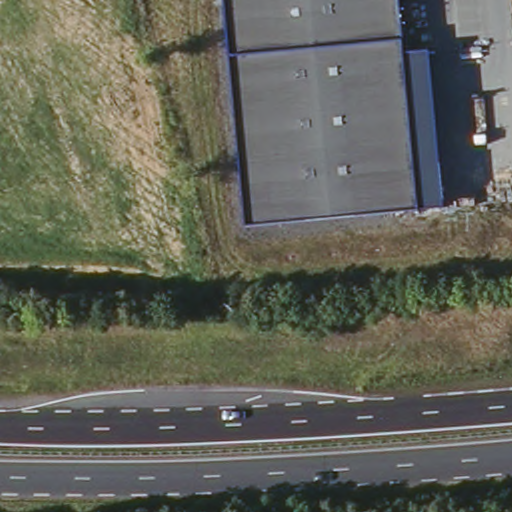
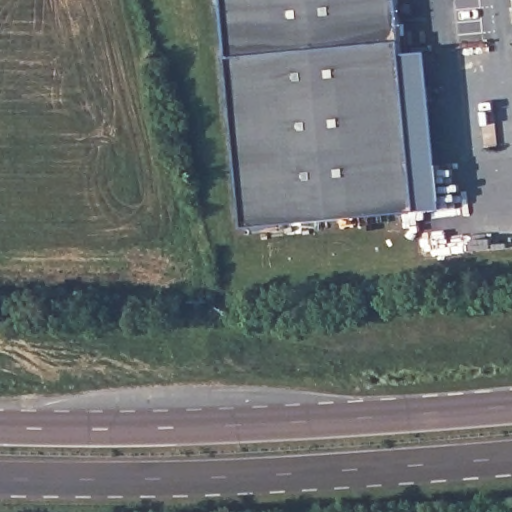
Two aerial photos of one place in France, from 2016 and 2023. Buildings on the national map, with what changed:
unchanged [(407,51),(430,51),(445,206),(246,225),(224,0),(401,0),(407,51)]

